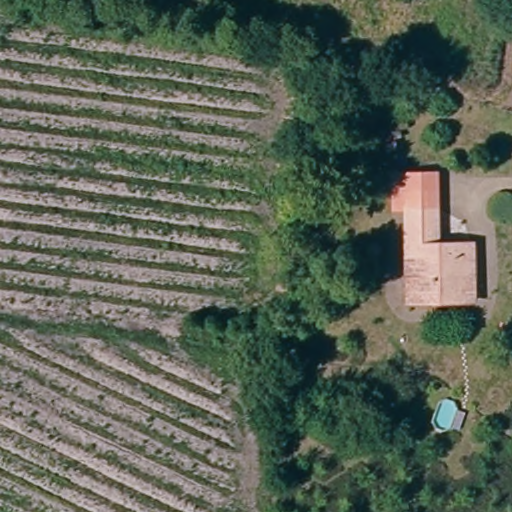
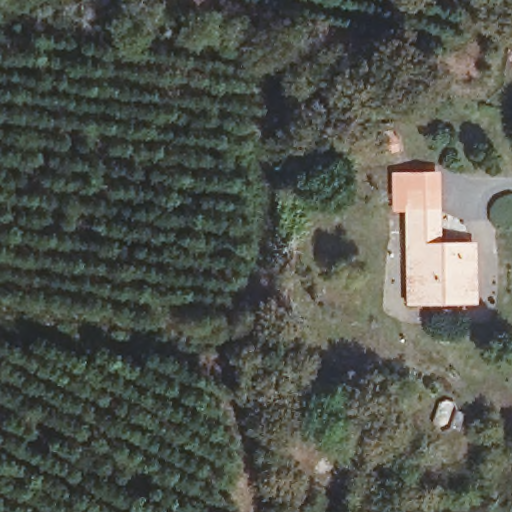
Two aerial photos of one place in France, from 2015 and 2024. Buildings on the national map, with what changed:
unchanged [(404,302),(408,276),(408,261),(417,205),(401,202),(408,168),(424,171),(449,176),(444,209),(438,244),(466,247),(483,250),(479,286),(474,312),(427,305),(404,302)]

